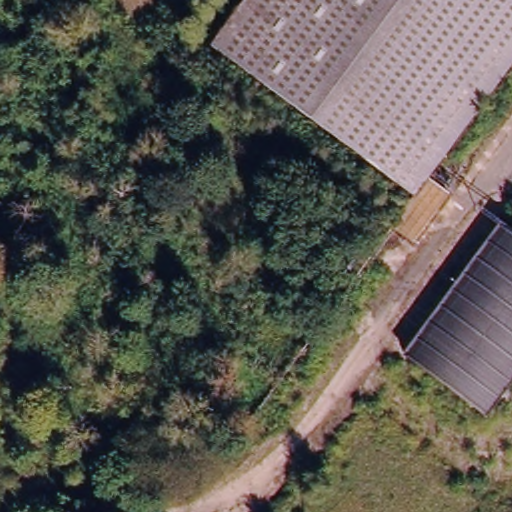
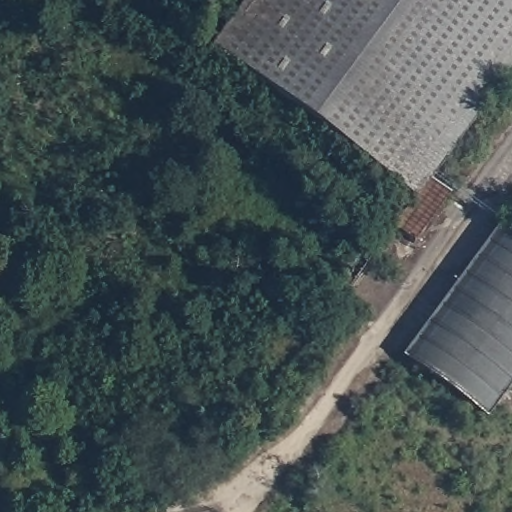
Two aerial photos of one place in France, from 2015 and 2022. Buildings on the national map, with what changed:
unchanged [(512,0),(512,64),(400,203),(202,46),(239,0),(512,0)]
unchanged [(428,183),(450,199),(413,247),(390,230),(428,183)]
unchanged [(505,227),(512,233),(512,380),(484,414),(405,353),(505,227)]

